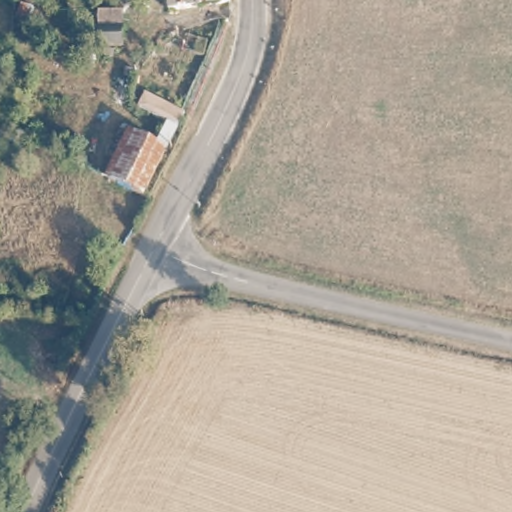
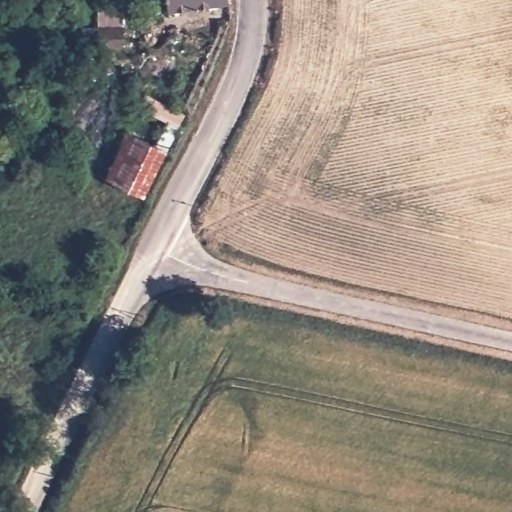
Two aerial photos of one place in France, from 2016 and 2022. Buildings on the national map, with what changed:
unchanged [(170,6),(168,0),(220,0),(170,6)]
unchanged [(125,21),(124,40),(101,37),(101,20),(125,21)]
unchanged [(150,137),(161,116),(180,127),(170,147),(147,196),(107,174),(129,129),(150,137)]

